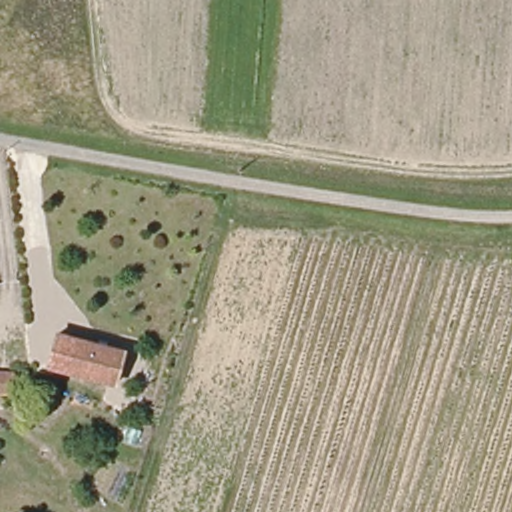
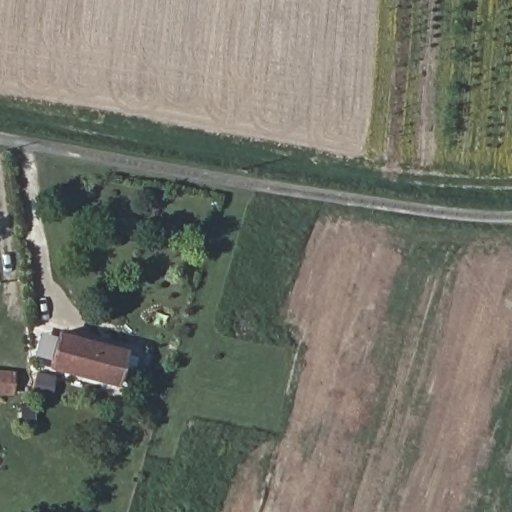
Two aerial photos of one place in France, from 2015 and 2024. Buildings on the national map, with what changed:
unchanged [(112,385),(49,367),(57,334),(122,352),(112,385)]
unchanged [(11,396),(0,394),(0,371),(14,373),(11,396)]

